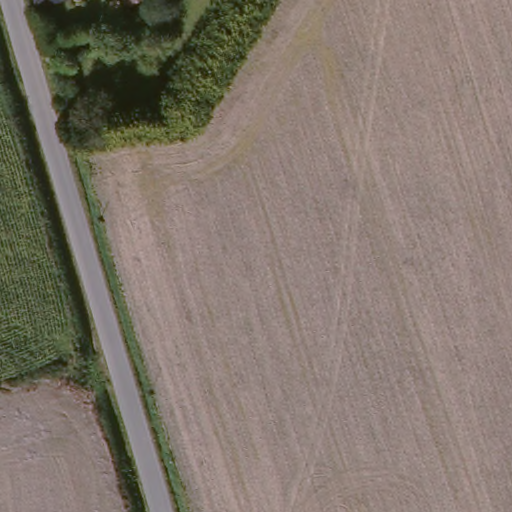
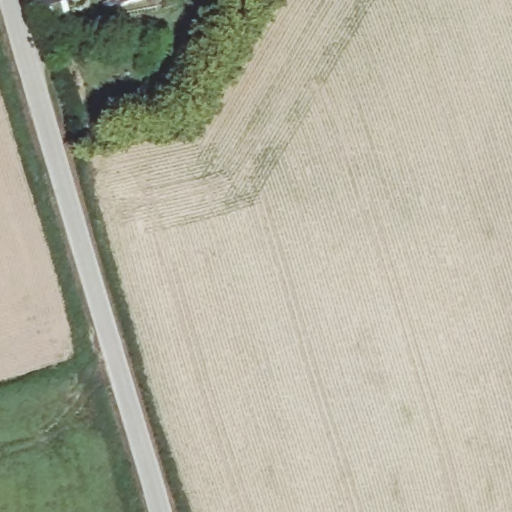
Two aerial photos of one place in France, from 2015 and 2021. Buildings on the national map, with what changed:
unchanged [(64,6),(45,12),(42,2),(41,0),(62,0),(64,6)]

